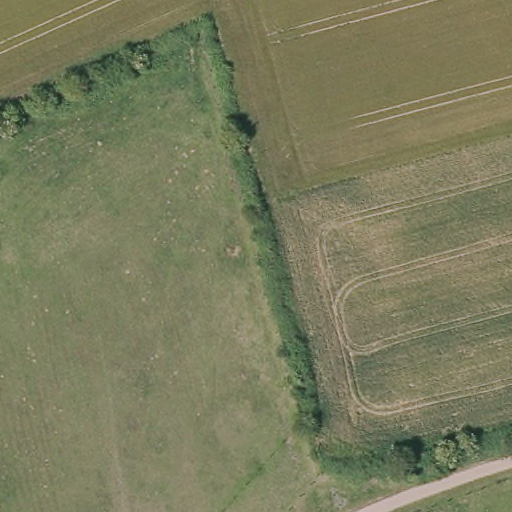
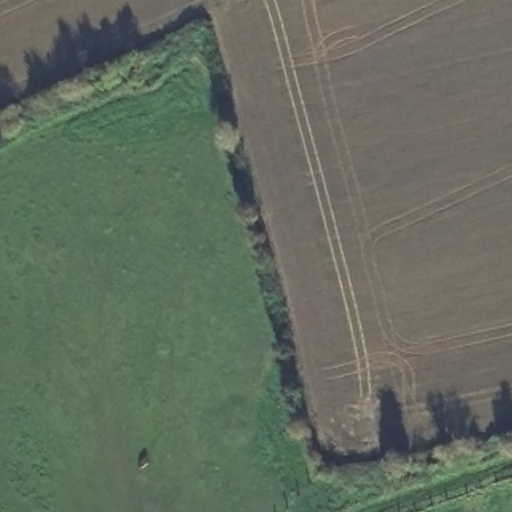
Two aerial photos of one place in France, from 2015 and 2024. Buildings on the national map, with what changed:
[]

